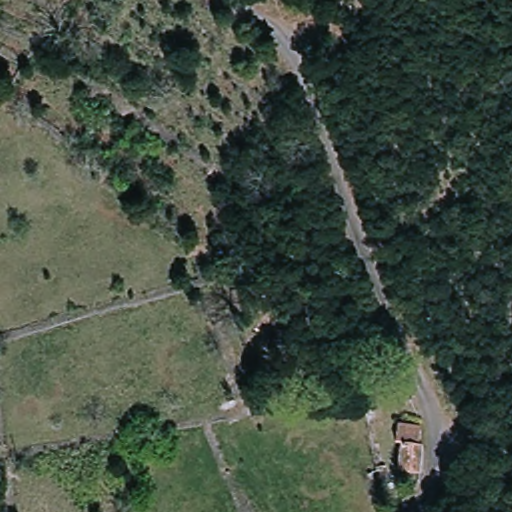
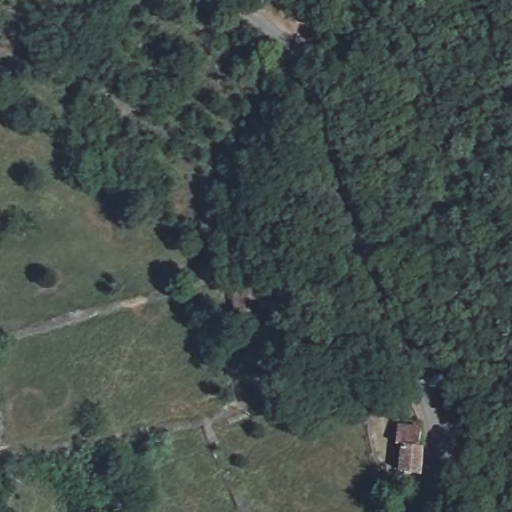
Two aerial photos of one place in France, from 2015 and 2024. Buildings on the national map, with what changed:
unchanged [(397,474),(406,441),(397,439),(399,421),(426,425),(428,443),(422,462),(414,479),(397,474)]

